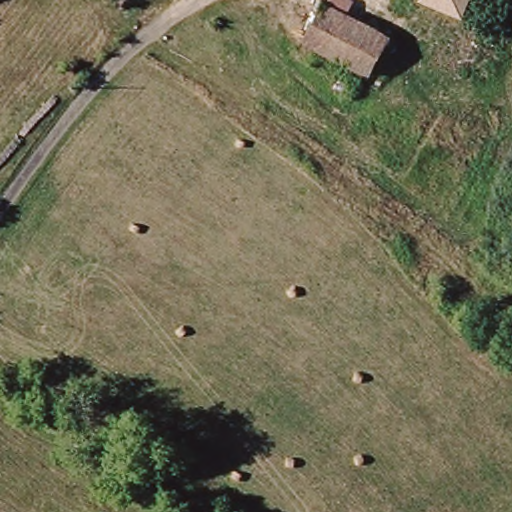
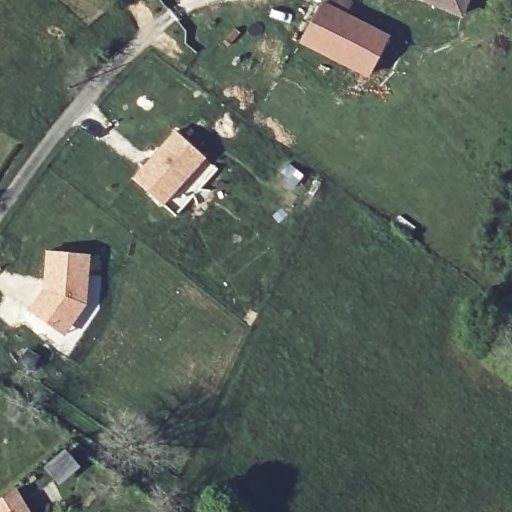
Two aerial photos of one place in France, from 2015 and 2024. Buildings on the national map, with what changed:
unchanged [(302,43),(325,1),(330,4),(332,0),(356,0),(349,13),(391,34),(369,77),(302,43)]
unchanged [(465,17),(422,0),(472,0),(465,17)]
new [(132,178),(176,130),(206,158),(162,205),(132,178)]
new [(47,250),(91,255),(86,303),(64,336),(29,311),(47,250)]
new [(0,512),(0,498),(17,489),(31,512),(0,512)]

